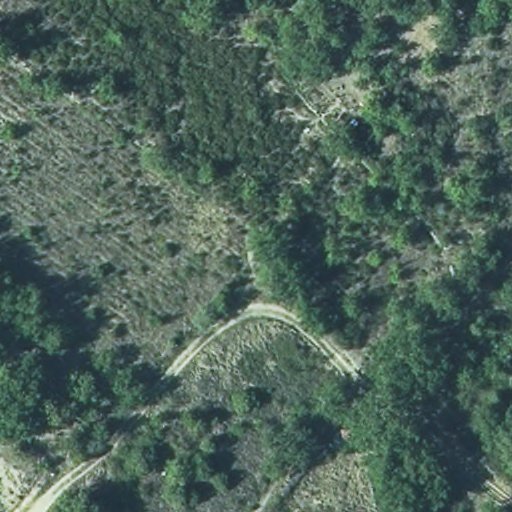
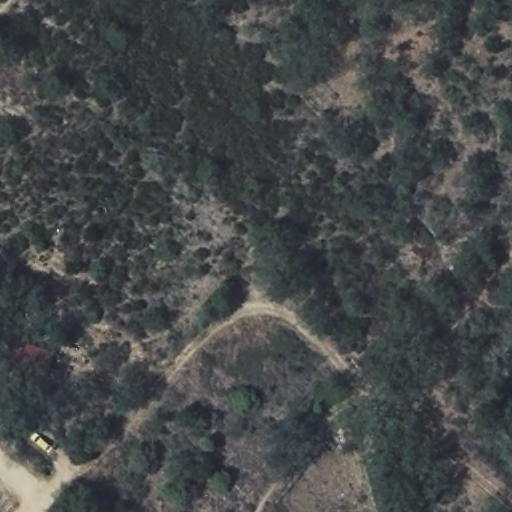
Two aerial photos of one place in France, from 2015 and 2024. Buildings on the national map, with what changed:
unchanged [(51,350),(42,369),(28,368),(32,345),(51,350)]

